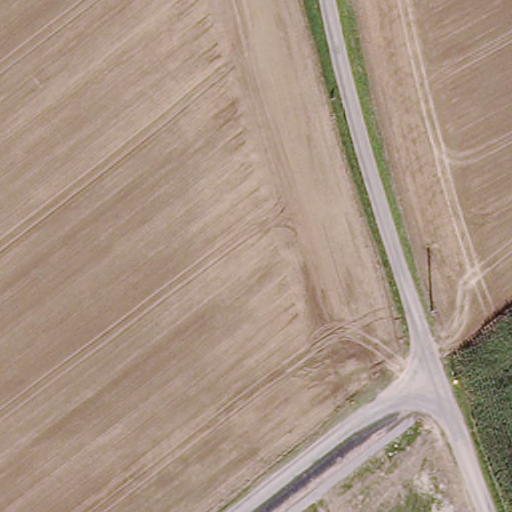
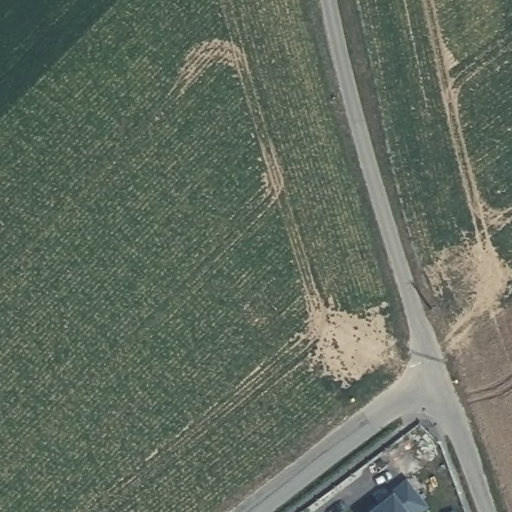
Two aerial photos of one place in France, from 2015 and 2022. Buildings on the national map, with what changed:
new [(396,494),(413,482),(433,509),(429,512),(371,512),(396,494)]

